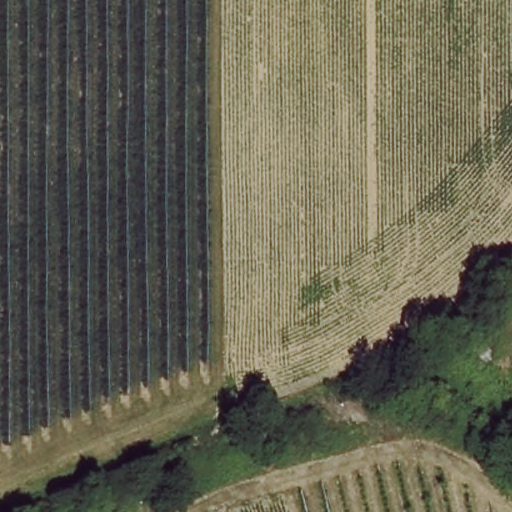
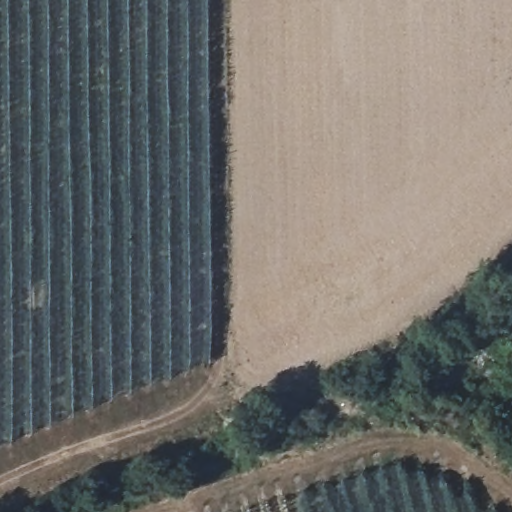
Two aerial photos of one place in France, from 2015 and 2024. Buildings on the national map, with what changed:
unchanged [(457,383),(486,399),(476,417),(447,402),(457,383)]

